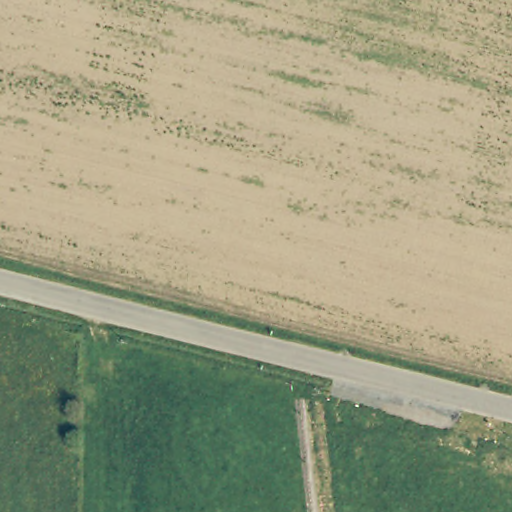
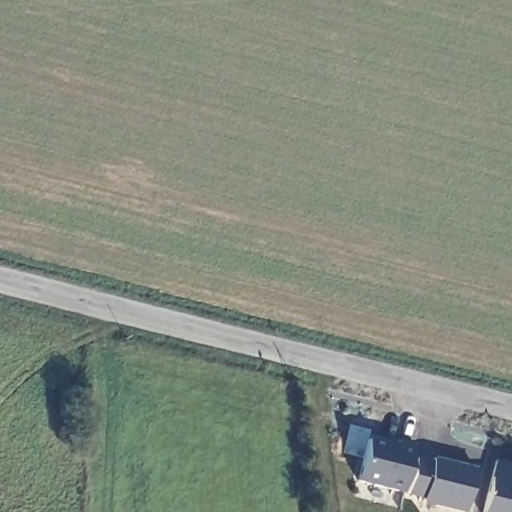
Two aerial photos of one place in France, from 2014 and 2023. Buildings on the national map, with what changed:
new [(354,481),(366,439),(381,444),(384,439),(395,442),(395,439),(412,444),(400,492),(354,481)]
new [(431,460),(431,457),(473,468),(463,512),(459,512),(418,502),(420,499),(404,495),(414,456),(431,460)]
new [(492,460),(512,464),(512,512),(481,512),(492,460)]

